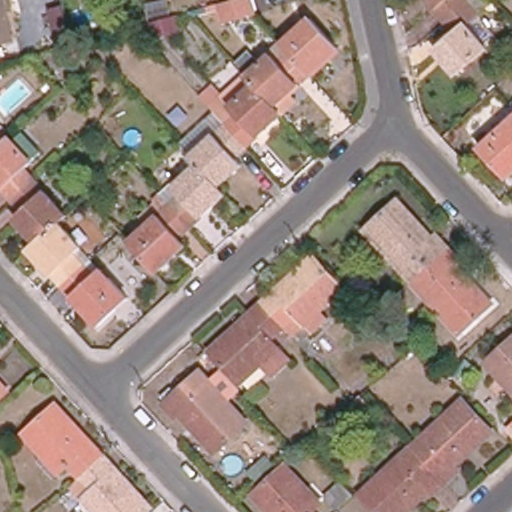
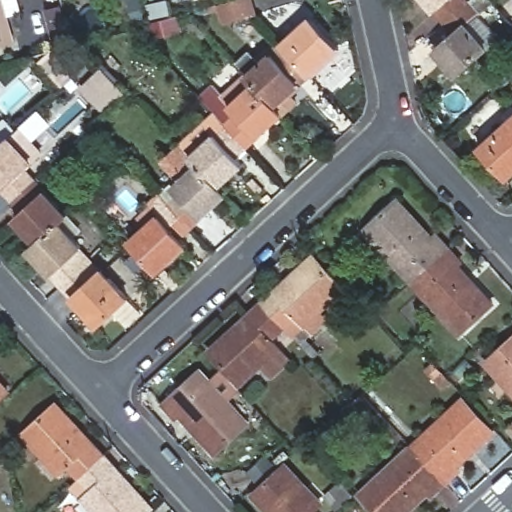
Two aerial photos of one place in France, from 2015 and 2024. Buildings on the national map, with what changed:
unchanged [(0,36),(0,0),(1,0),(10,33),(0,36)]
unchanged [(225,22),(220,5),(237,0),(252,0),(256,14),(225,22)]
unchanged [(445,22),(426,0),(467,0),(468,2),(445,22)]
unchanged [(488,49),(457,76),(435,51),(455,34),(445,22),(468,2),(478,14),(476,16),(466,24),(488,49)]
unchanged [(75,45),(59,49),(48,8),(65,5),(75,45)]
unchanged [(316,17),(344,47),(315,74),(293,49),(288,44),(316,17)]
unchanged [(294,92),(302,102),(287,115),(273,99),(260,85),(252,76),(254,75),(244,64),(256,52),(266,63),(288,44),(293,49),(315,74),(294,92)]
unchanged [(252,147),(237,131),(235,128),(230,123),(224,116),(221,113),(215,106),(226,96),(235,106),(260,85),(273,99),(287,115),(252,147)]
unchanged [(204,165),(186,145),(165,123),(166,123),(189,102),(209,124),(221,113),(224,116),(230,123),(235,128),(237,131),(252,147),(241,157),(248,165),(224,187),(204,165)]
unchanged [(480,149),(508,122),(501,115),(512,105),(512,175),(508,179),(480,149)]
unchanged [(35,180),(12,201),(0,187),(0,147),(3,145),(11,137),(34,162),(25,169),(35,180)]
unchanged [(3,145),(0,147),(0,141),(3,145)]
unchanged [(196,227),(169,197),(190,178),(178,166),(189,156),(200,168),(204,165),(224,187),(231,195),(196,227)]
unchanged [(69,216),(60,224),(38,244),(15,219),(23,212),(12,201),(35,180),(45,190),(69,216)]
unchanged [(185,237),(192,245),(163,272),(156,264),(135,242),(154,225),(146,217),(169,197),(196,227),(185,237)]
unchanged [(365,230),(398,199),(417,220),(412,225),(428,243),(437,235),(449,248),(412,282),(365,230)]
unchanged [(82,247),(75,255),(85,266),(62,286),(53,276),(30,251),(38,244),(60,224),(82,247)]
unchanged [(493,303),(460,334),(412,282),(449,248),(461,261),(452,269),(469,287),(475,282),(493,303)]
unchanged [(322,311),(330,319),(313,333),(297,316),(284,327),(261,303),(314,256),(345,290),(322,311)]
unchanged [(99,325),(72,296),(62,286),(85,266),(91,260),(101,271),(102,270),(129,298),(99,325)]
unchanged [(290,361),(272,377),(261,366),(240,384),(210,350),(261,303),(284,327),(271,339),(290,361)]
unchanged [(512,340),(512,391),(486,362),(512,340)]
unchanged [(250,422),(215,453),(196,433),(202,428),(185,410),(176,417),(165,405),(201,371),(250,422)]
unchanged [(9,392),(0,400),(0,383),(9,392)]
unchanged [(463,398),(495,432),(473,451),(468,446),(450,462),(458,471),(445,483),(430,466),(411,446),(463,398)]
unchanged [(89,447),(93,442),(105,456),(103,457),(81,477),(69,465),(60,473),(24,435),(57,404),(77,426),(74,430),(89,447)]
unchanged [(407,512),(376,512),(360,493),(411,446),(430,466),(445,483),(432,495),(425,486),(406,503),(411,508),(407,512)]
unchanged [(117,468),(112,472),(127,489),(132,485),(152,507),(147,512),(95,512),(83,500),(93,491),(81,477),(103,457),(105,456),(117,468)]
unchanged [(313,511),(314,512),(269,512),(253,495),(286,464),(322,503),(313,511)]

